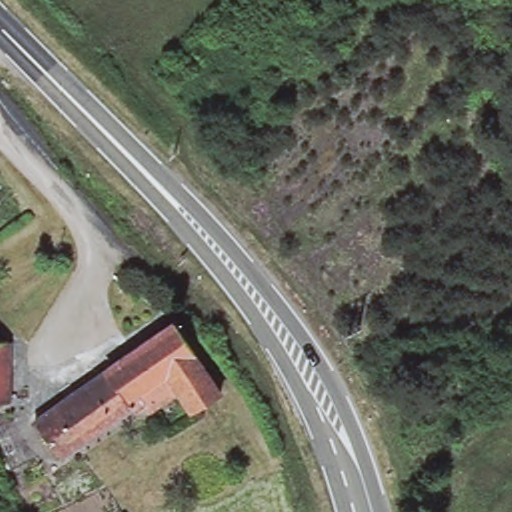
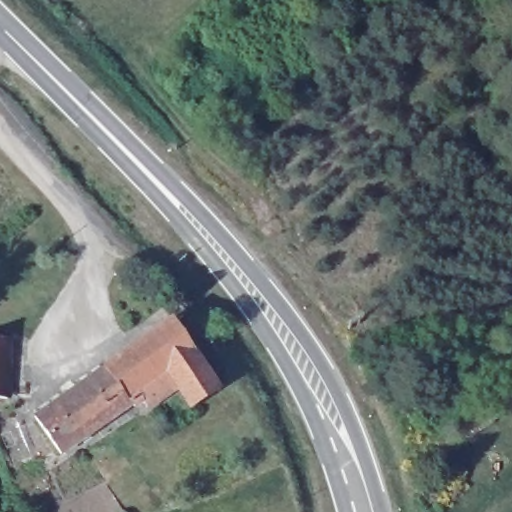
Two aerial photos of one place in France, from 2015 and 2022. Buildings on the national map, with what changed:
unchanged [(35,417),(106,367),(173,320),(218,382),(189,402),(179,387),(148,409),(143,402),(135,407),(132,403),(61,453),(35,417)]
unchanged [(2,342),(9,397),(0,398),(0,343),(2,342)]

